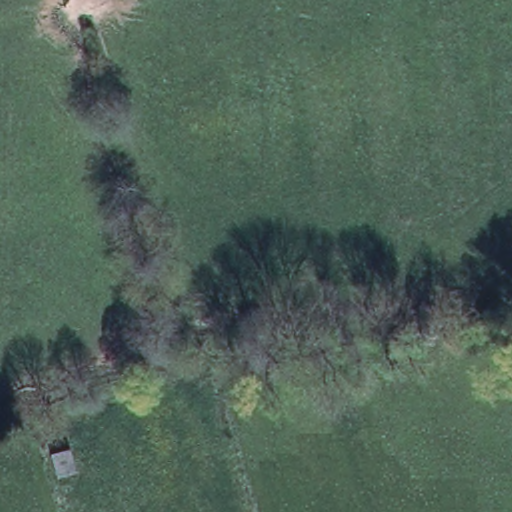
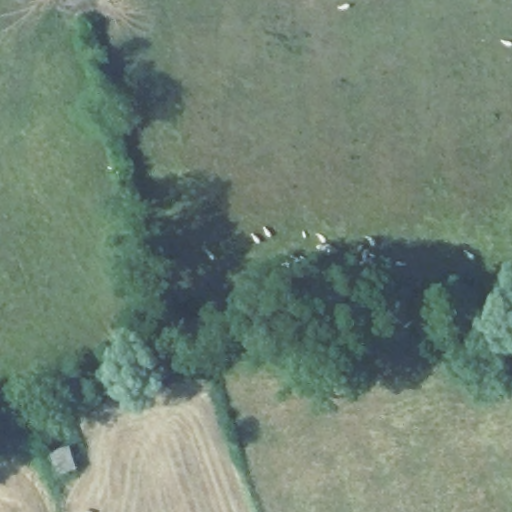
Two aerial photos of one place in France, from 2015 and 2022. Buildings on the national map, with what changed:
unchanged [(52,473),(46,450),(67,445),(75,471),(52,473)]

